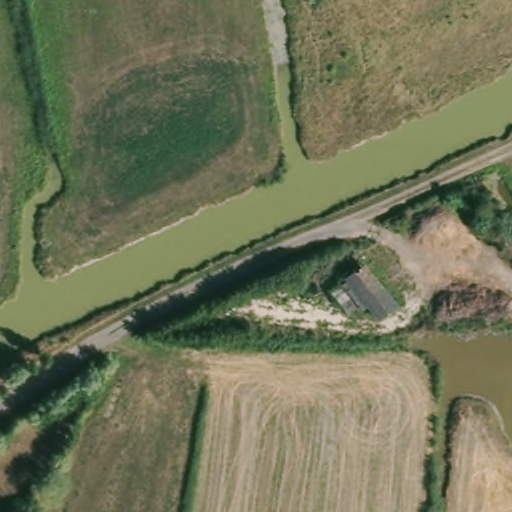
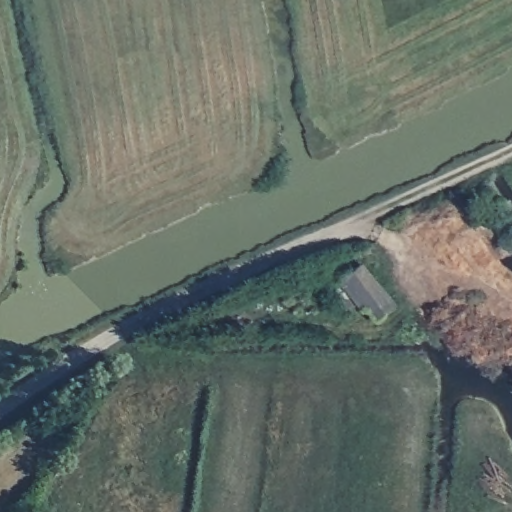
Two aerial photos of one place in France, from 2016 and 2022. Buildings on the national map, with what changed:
unchanged [(376,320),(363,304),(346,316),(327,291),(341,280),(366,263),(399,307),(376,320)]

